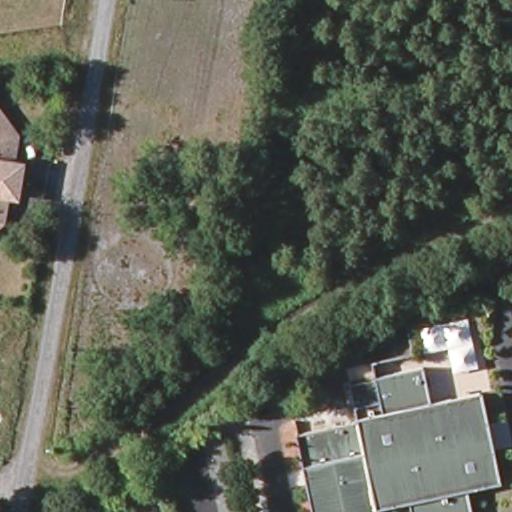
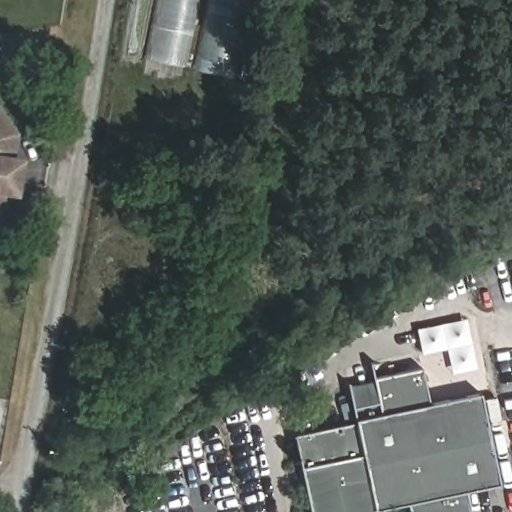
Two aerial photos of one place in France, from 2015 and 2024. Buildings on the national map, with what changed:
new [(240,78),(148,60),(160,0),(253,0),(240,78)]
unchanged [(20,138),(15,165),(25,167),(22,182),(0,179),(0,110),(20,138)]
unchanged [(22,182),(20,198),(10,196),(5,224),(0,227),(0,179),(22,182)]
unchanged [(428,402),(477,391),(498,482),(465,490),(470,512),(408,512),(406,502),(373,509),(355,421),(352,406),(347,384),(371,378),(372,376),(420,366),(428,402)]
unchanged [(373,509),(374,512),(310,512),(295,437),(355,421),(372,505),(373,509)]
demolished [(117,512),(106,512),(109,507),(117,512)]

